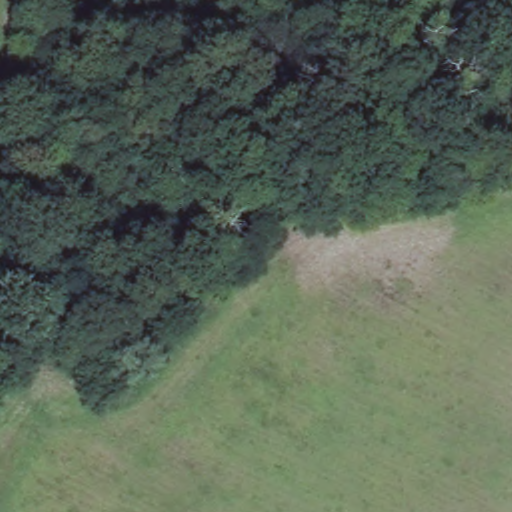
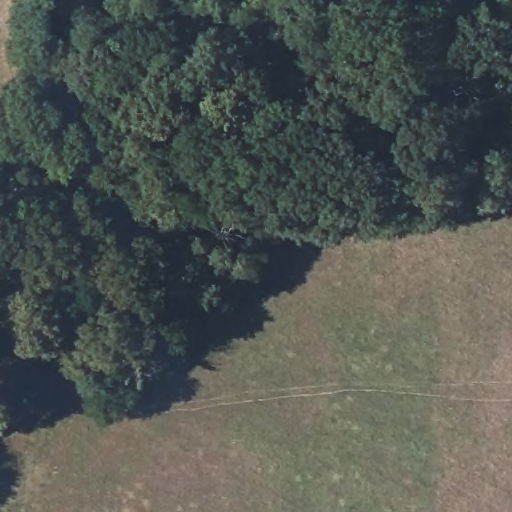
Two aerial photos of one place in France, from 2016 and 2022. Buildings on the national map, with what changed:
[]

